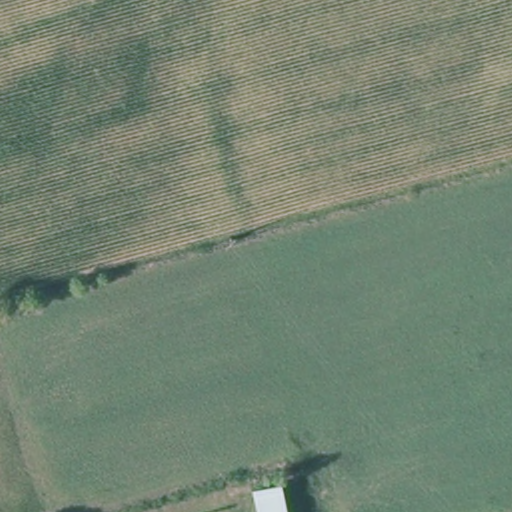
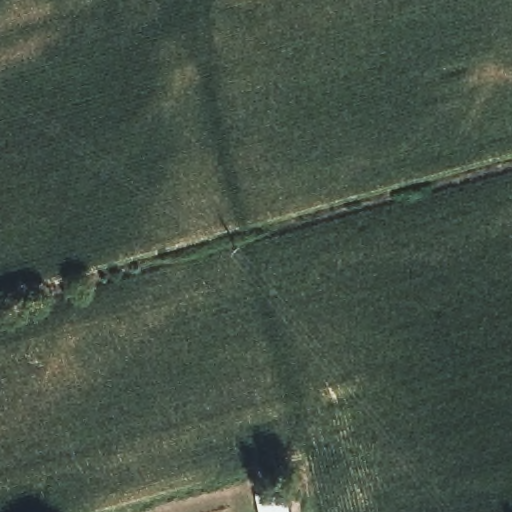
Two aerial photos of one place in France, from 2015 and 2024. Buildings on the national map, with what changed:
unchanged [(253,484),(289,475),(297,512),(259,512),(253,484)]

